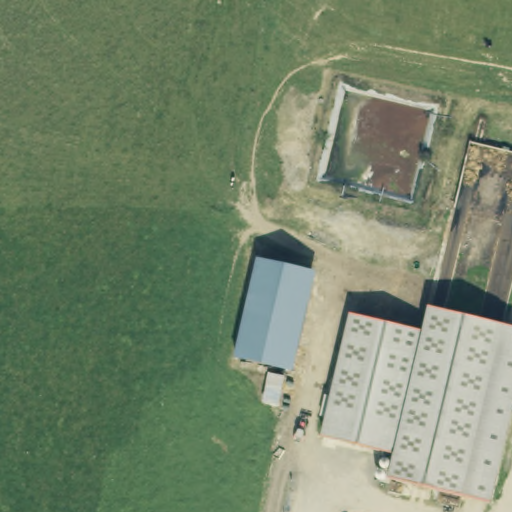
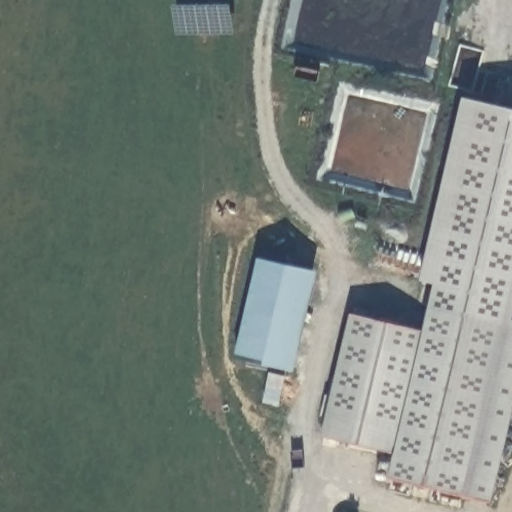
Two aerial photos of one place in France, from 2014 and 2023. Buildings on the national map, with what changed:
new [(432,307),(436,283),(423,281),(464,97),(512,108),(512,325),(432,307)]
unchanged [(309,270),(287,368),(238,357),(260,259),(297,267),(309,270)]
unchanged [(391,478),(397,453),(324,436),(329,415),(320,412),(325,393),(333,395),(353,312),(426,330),(432,307),(512,325),(512,412),(490,502),(391,478)]

